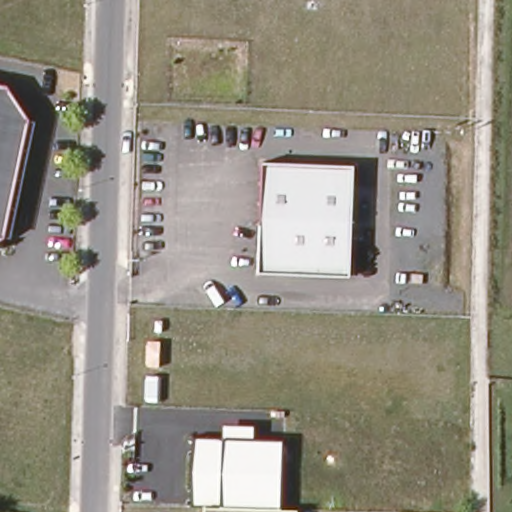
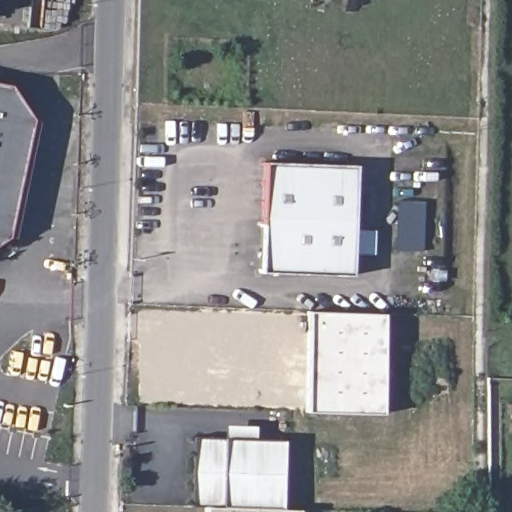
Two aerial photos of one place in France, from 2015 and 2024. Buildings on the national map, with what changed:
unchanged [(27,116),(4,234),(0,237),(0,80),(5,81),(27,116)]
unchanged [(355,163),(350,276),(258,273),(261,160),(355,163)]
new [(394,201),(422,202),(420,252),(392,251),(394,201)]
new [(307,311),(384,314),(382,415),(305,412),(307,311)]
unchanged [(188,441),(279,445),(276,500),(185,496),(188,441)]
unchanged [(203,503),(295,507),(295,512),(203,512),(203,503)]

